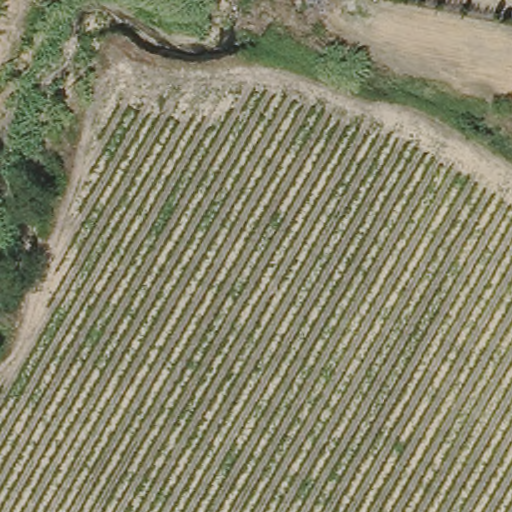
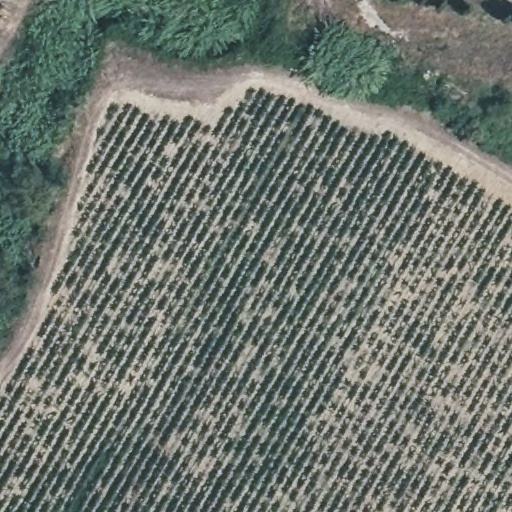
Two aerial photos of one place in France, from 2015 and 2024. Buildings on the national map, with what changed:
[]

